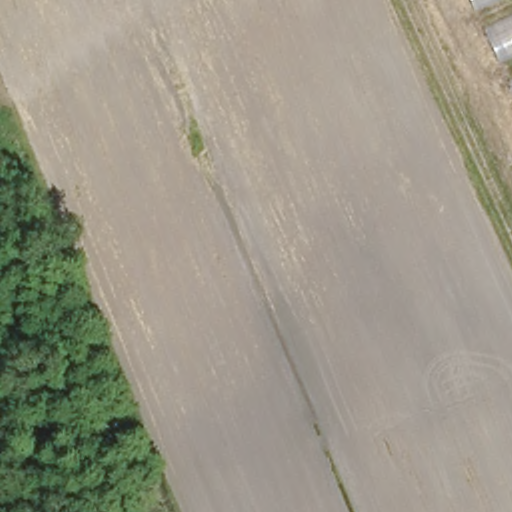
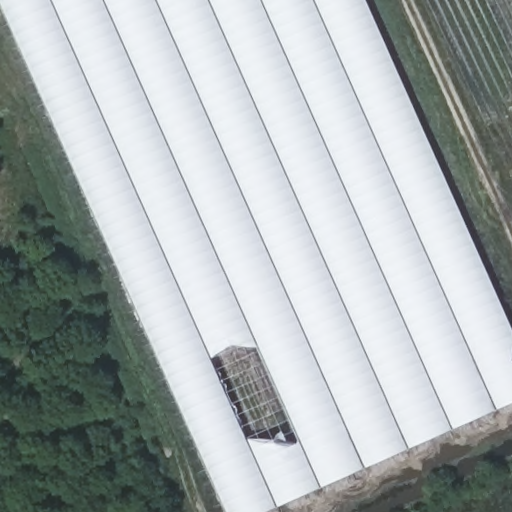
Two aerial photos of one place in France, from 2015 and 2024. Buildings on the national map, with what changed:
new [(0,0),(367,0),(512,325),(512,403),(264,512),(228,512),(0,0)]
demolished [(512,0),(512,90),(470,0),(512,0)]

